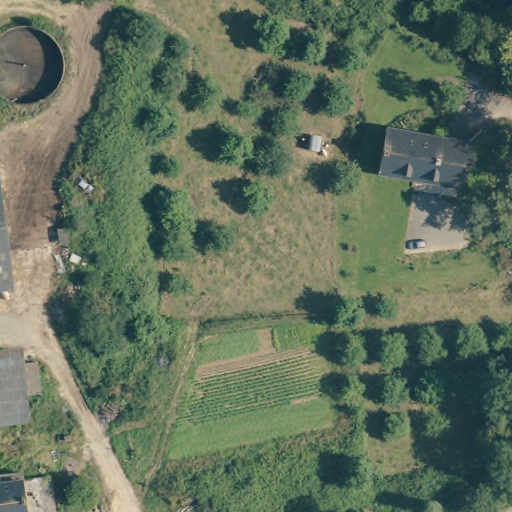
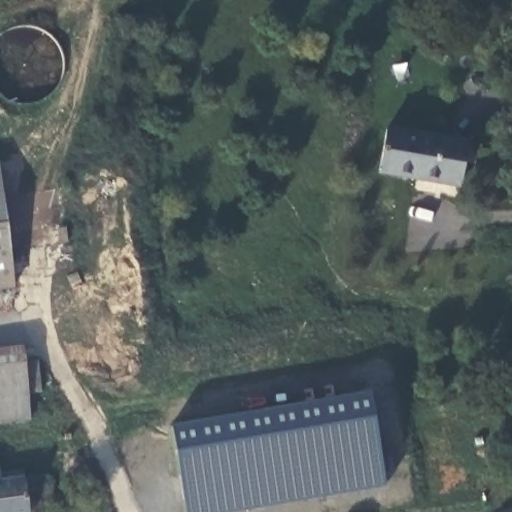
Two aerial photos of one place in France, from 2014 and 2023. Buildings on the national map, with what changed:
unchanged [(417,176),(415,180),(375,174),(381,128),(464,142),(456,183),(417,176)]
unchanged [(11,286),(0,287),(0,211),(11,286)]
unchanged [(29,410),(0,415),(0,360),(26,357),(37,356),(41,384),(30,386),(26,387),(29,410)]
new [(368,393),(384,485),(231,512),(186,512),(171,427),(368,393)]
unchanged [(22,466),(24,477),(43,475),(50,511),(43,512),(0,512),(0,470),(22,466)]

